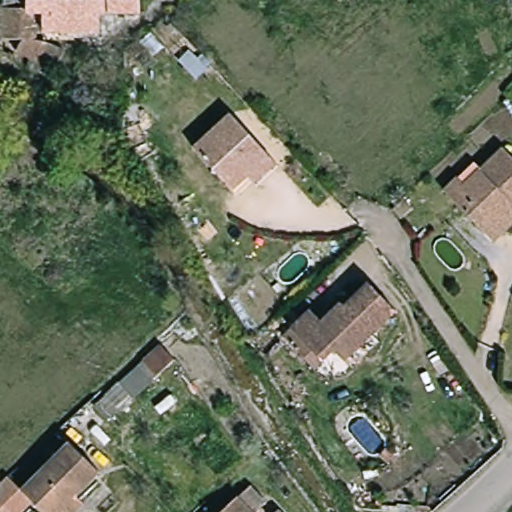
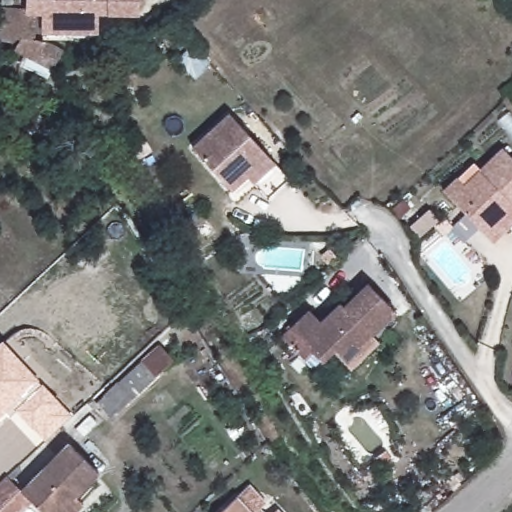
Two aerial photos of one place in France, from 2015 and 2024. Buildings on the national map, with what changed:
unchanged [(141,0),(142,13),(102,13),(102,33),(56,34),(58,62),(25,62),(23,39),(1,36),(2,0),(141,0)]
unchanged [(259,192),(251,183),(235,196),(197,152),(235,120),(273,164),(281,173),(259,192)]
unchanged [(496,241),(443,188),(460,171),(471,181),(506,146),(512,152),(512,224),(511,225),(496,241)]
unchanged [(359,365),(350,356),(344,349),(322,370),(289,334),(309,317),(320,329),(343,308),(346,311),(375,286),(398,312),(375,333),(384,343),(359,365)]
unchanged [(98,403),(162,340),(175,360),(114,417),(98,403)]
new [(0,418),(0,343),(2,341),(39,380),(42,384),(60,404),(70,415),(45,440),(33,428),(17,410),(10,417),(5,412),(0,418)]
unchanged [(79,512),(44,512),(32,499),(19,512),(0,512),(0,482),(7,474),(22,489),(70,443),(101,474),(80,495),(88,503),(79,512)]
unchanged [(239,496),(250,486),(266,503),(257,512),(222,512),(239,496)]

